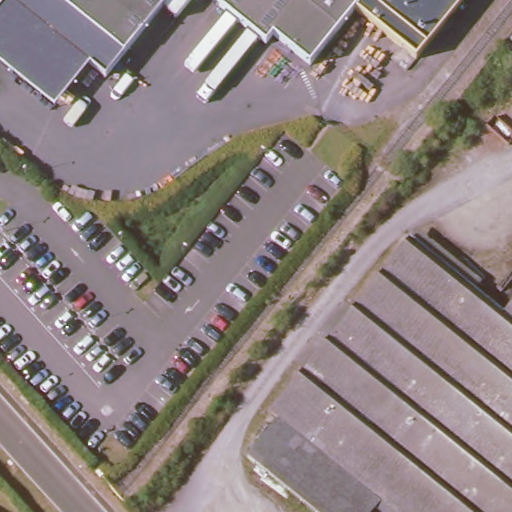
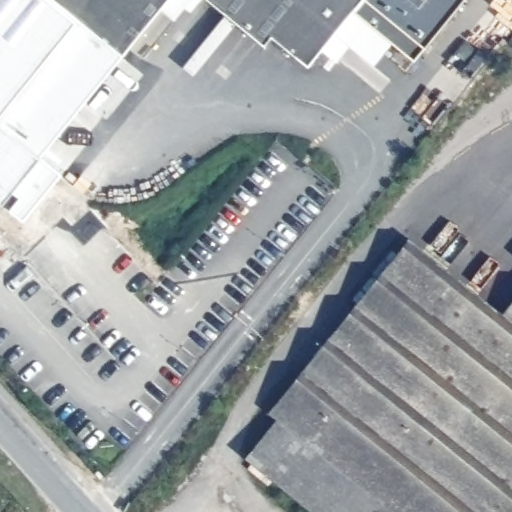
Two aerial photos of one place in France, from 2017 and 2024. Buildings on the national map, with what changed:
unchanged [(104,71),(88,59),(52,101),(0,58),(0,0),(64,0),(122,49),(104,71)]
unchanged [(64,0),(162,0),(122,49),(64,0)]
unchanged [(355,4),(310,58),(272,27),(265,37),(220,0),(464,0),(463,1),(418,58),(402,45),(355,4)]
new [(318,47),(355,4),(395,39),(374,66),(350,46),(337,62),(318,47)]
unchanged [(510,36),(512,33),(512,38),(510,36)]
new [(88,59),(104,71),(108,75),(42,154),(63,172),(25,220),(5,203),(0,199),(0,58),(52,101),(88,59)]
unchanged [(380,498),(369,512),(316,512),(248,456),(280,418),(270,410),(410,236),(506,317),(512,310),(512,512),(397,512),(380,498)]

